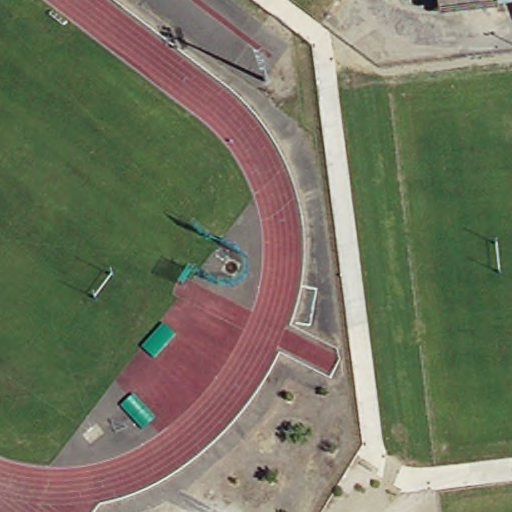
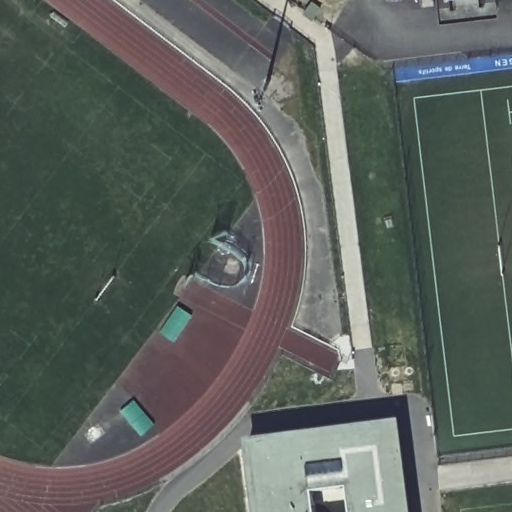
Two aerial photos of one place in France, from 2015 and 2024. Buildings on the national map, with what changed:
unchanged [(372,0),(394,0),(372,2),(372,0)]
unchanged [(411,19),(408,0),(507,0),(508,8),(411,19)]
new [(412,512),(352,512),(347,486),(312,491),(315,512),(254,512),(245,440),(401,418),(412,512)]

